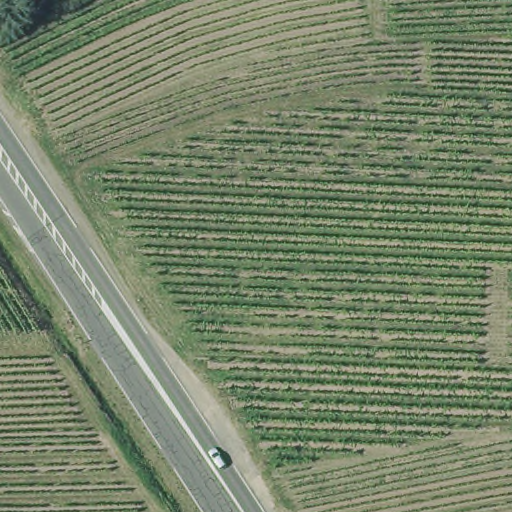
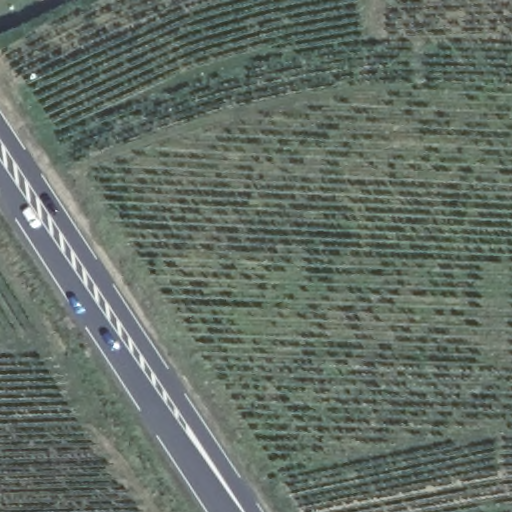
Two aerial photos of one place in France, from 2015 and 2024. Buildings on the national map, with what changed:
[]

